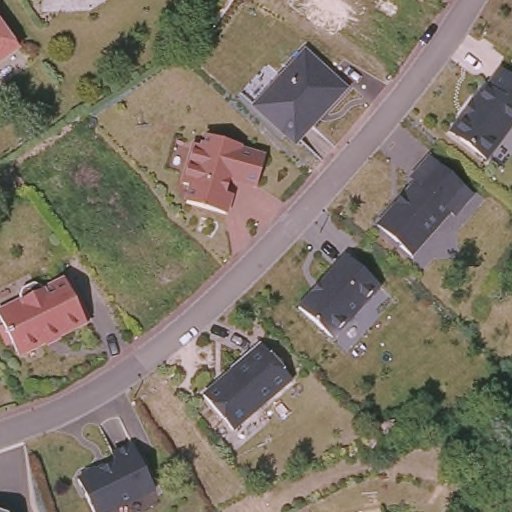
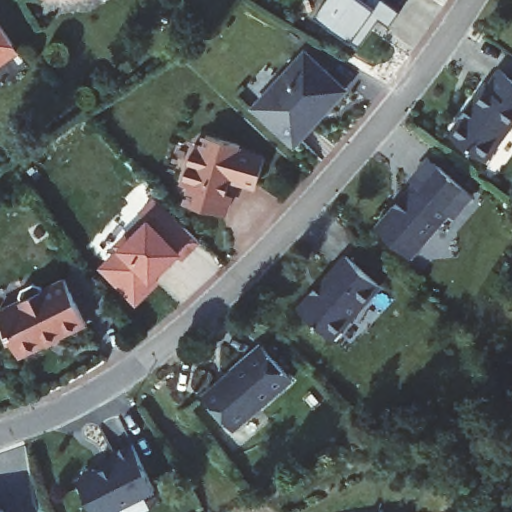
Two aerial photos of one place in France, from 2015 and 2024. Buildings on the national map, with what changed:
new [(383,0),(400,12),(390,27),(379,20),(360,47),(315,16),(327,0),(383,0)]
unchanged [(22,50),(0,66),(0,18),(22,50)]
unchanged [(345,91),(324,113),(322,111),(315,119),(317,121),(297,142),(283,130),(279,134),(252,109),(304,54),(345,91)]
unchanged [(512,127),(485,162),(450,135),(487,85),(489,87),(501,71),(512,80),(512,127)]
unchanged [(256,189),(230,180),(225,197),(229,198),(224,216),(185,204),(190,187),(182,185),(195,146),(202,149),(206,137),(240,147),(238,151),(264,159),(256,189)]
unchanged [(472,197),(454,217),(450,213),(411,257),(377,227),(416,183),(412,179),(429,159),(472,197)]
new [(139,211),(156,198),(201,243),(137,307),(97,267),(147,219),(139,211)]
unchanged [(372,293),(323,345),(295,312),(310,295),(317,289),(344,260),(372,293)]
unchanged [(22,300),(20,296),(22,290),(34,283),(40,285),(43,290),(65,280),(65,282),(64,289),(70,304),(78,306),(86,323),(59,336),(59,335),(45,341),(45,343),(19,356),(0,320),(0,311),(22,300)]
unchanged [(292,381),(232,431),(203,397),(215,387),(216,386),(218,386),(220,387),(221,388),(235,376),(232,372),(262,347),(292,381)]
unchanged [(154,490),(111,512),(92,512),(77,481),(80,480),(82,475),(93,470),(99,471),(115,463),(111,455),(132,445),(154,490)]

